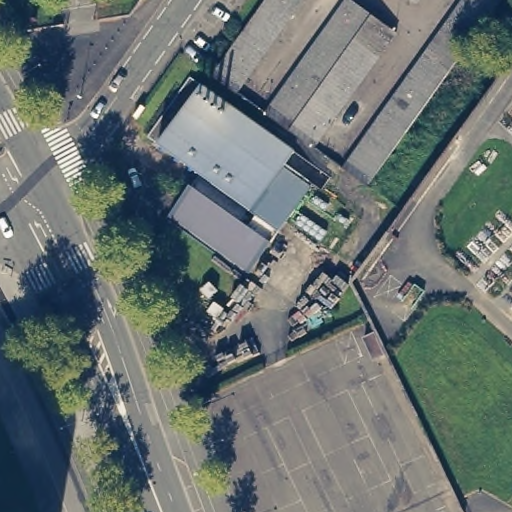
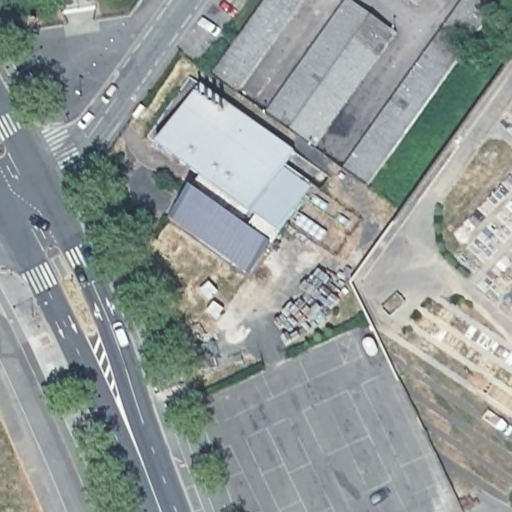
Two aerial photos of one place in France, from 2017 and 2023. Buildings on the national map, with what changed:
unchanged [(263,0),(300,0),(237,89),(212,71),(263,0)]
unchanged [(343,0),(358,0),(398,28),(315,144),(265,109),(343,0)]
unchanged [(416,0),(417,0),(417,1),(416,0)]
unchanged [(459,0),(496,0),(470,37),(445,21),(459,0)]
unchanged [(368,181),(343,164),(425,47),(450,66),(374,174),(368,181)]
unchanged [(296,151),(284,168),(312,188),(250,272),(169,216),(200,171),(150,134),(192,76),(296,151)]
unchanged [(379,358),(374,360),(365,340),(375,334),(385,355),(379,358)]

